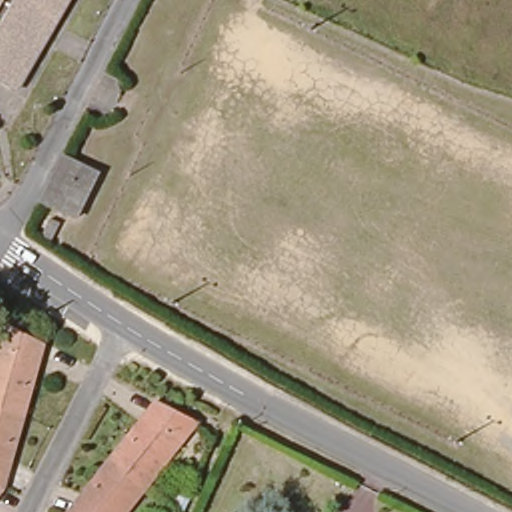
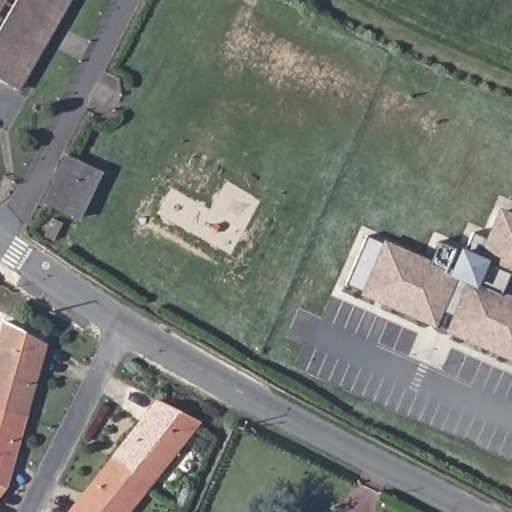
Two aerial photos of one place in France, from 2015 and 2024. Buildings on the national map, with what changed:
unchanged [(56,0),(6,87),(0,84),(0,0),(56,0)]
unchanged [(64,156),(96,171),(72,219),(41,204),(64,156)]
new [(512,295),(512,354),(349,283),(371,234),(433,261),(442,240),(467,251),(477,229),(494,237),(506,210),(512,213),(512,279),(506,292),(512,295)]
unchanged [(50,218),(57,222),(47,243),(40,240),(50,218)]
unchanged [(7,327),(42,343),(27,374),(35,377),(23,421),(0,414),(0,349),(7,327)]
unchanged [(99,465),(132,422),(137,427),(151,400),(189,423),(135,492),(99,465)]
unchanged [(23,421),(14,452),(4,452),(7,477),(0,486),(0,414),(23,421)]
unchanged [(80,501),(76,496),(99,465),(135,492),(120,512),(67,512),(80,501)]

